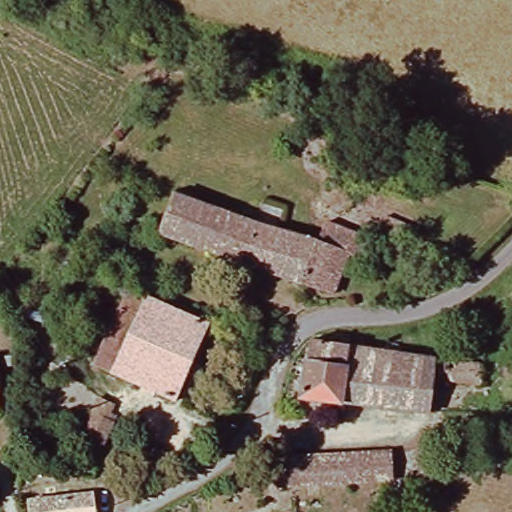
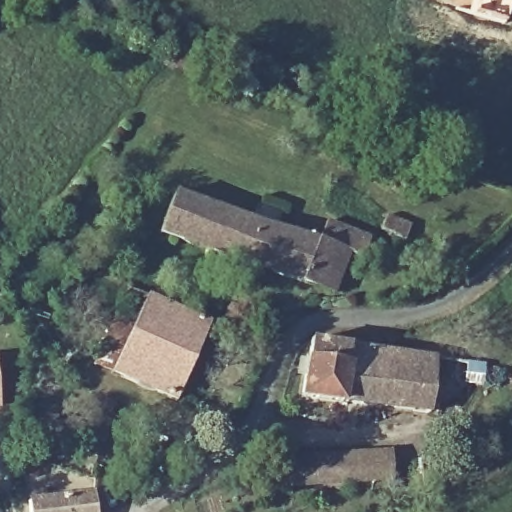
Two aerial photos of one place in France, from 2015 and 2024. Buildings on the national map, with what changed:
new [(505,21),(467,11),(470,0),(512,0),(505,21)]
unchanged [(319,227),(319,224),(366,242),(357,264),(344,260),(330,295),(156,234),(170,195),(311,243),(319,227)]
unchanged [(376,230),(383,216),(408,227),(401,241),(376,230)]
unchanged [(91,367),(126,290),(143,298),(108,373),(91,367)]
unchanged [(108,373),(143,298),(205,325),(172,400),(108,373)]
unchanged [(301,394),(309,336),(313,336),(483,362),(481,383),(433,375),(431,408),(301,394)]
unchanged [(78,443),(102,392),(116,400),(110,413),(117,416),(100,453),(78,443)]
unchanged [(283,458),(297,457),(398,450),(401,477),(346,483),(300,488),(284,490),(283,458)]
unchanged [(91,495),(94,512),(27,512),(25,503),(91,495)]

